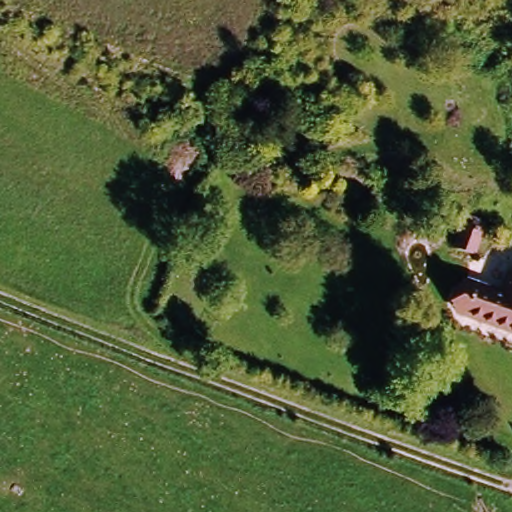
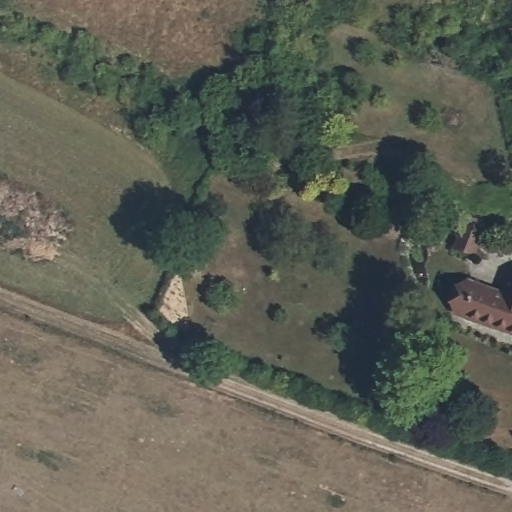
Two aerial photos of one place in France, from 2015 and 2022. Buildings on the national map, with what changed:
unchanged [(474,219),(492,226),(477,258),(460,250),(474,219)]
unchanged [(447,308),(457,282),(510,300),(512,294),(512,339),(447,308)]

